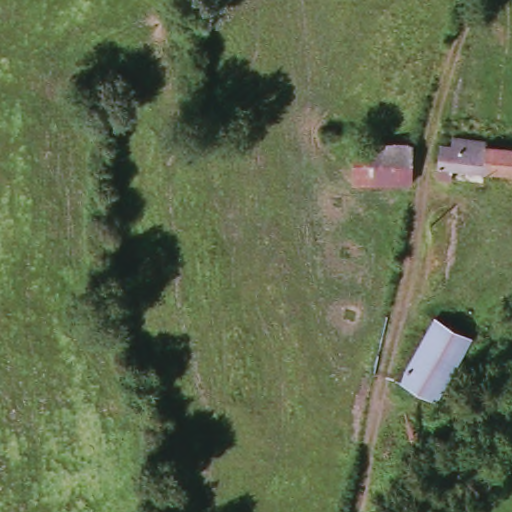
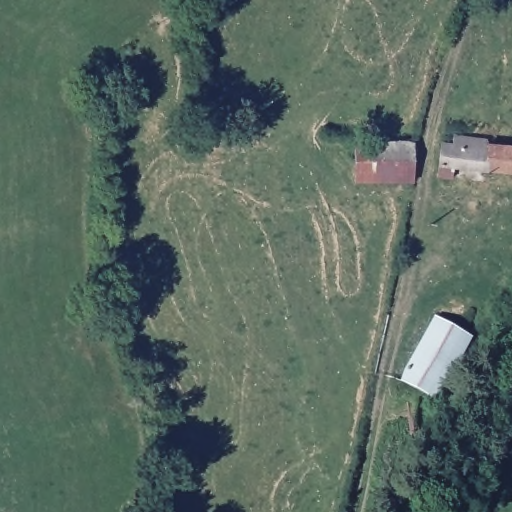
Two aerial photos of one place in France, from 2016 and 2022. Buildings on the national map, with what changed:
unchanged [(456,145),(456,138),(494,141),(493,148),(512,149),(512,175),(454,172),(453,182),(441,181),(447,144),(456,145)]
unchanged [(412,187),(355,185),(356,144),(415,145),(412,187)]
unchanged [(408,370),(436,317),(471,334),(437,398),(406,382),(408,370)]

